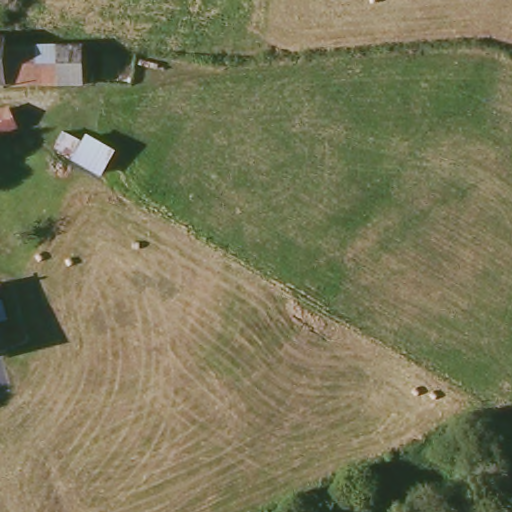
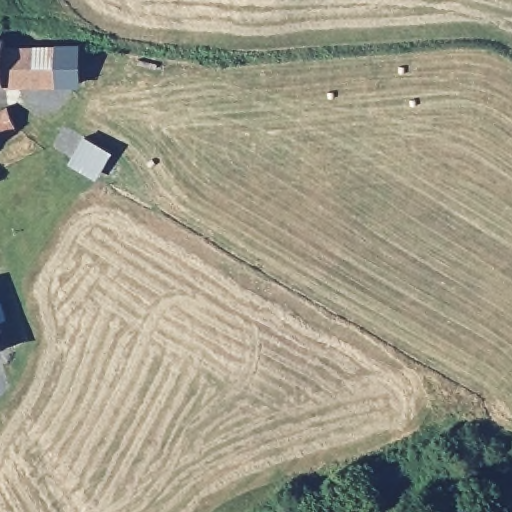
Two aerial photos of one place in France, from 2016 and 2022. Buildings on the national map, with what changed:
unchanged [(86,90),(67,89),(11,88),(0,88),(0,38),(8,39),(10,49),(65,51),(85,52),(86,90)]
unchanged [(12,116),(18,131),(2,136),(0,136),(0,120),(12,116)]
unchanged [(77,157),(88,137),(115,151),(104,172),(77,157)]
unchanged [(10,348),(0,353),(0,327),(10,348)]

